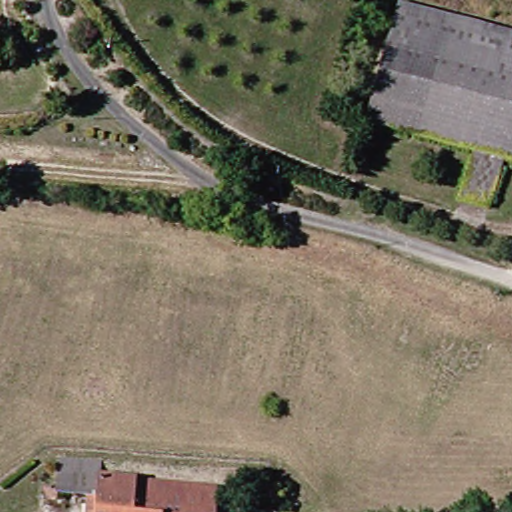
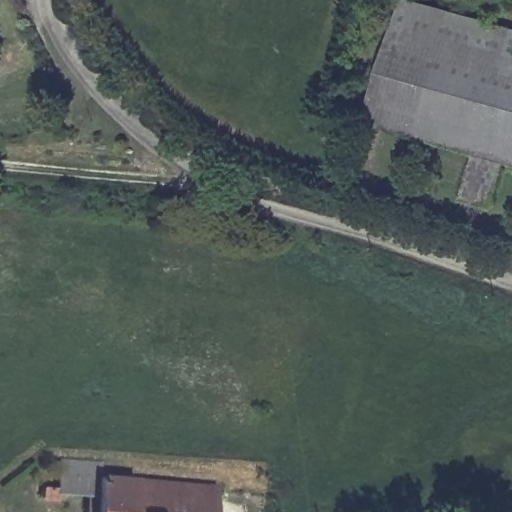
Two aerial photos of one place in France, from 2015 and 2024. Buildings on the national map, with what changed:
unchanged [(421,0),(422,0),(473,17),(476,16),(442,119),(384,101),(421,0)]
unchanged [(512,30),(512,136),(442,119),(476,16),(512,30)]
unchanged [(378,118),(384,101),(442,119),(436,139),(378,118)]
unchanged [(442,119),(512,136),(512,165),(508,164),(491,209),(461,199),(477,151),(436,139),(442,119)]
unchanged [(93,512),(94,510),(72,509),(60,508),(62,470),(75,470),(222,486),(220,512),(93,512)]

